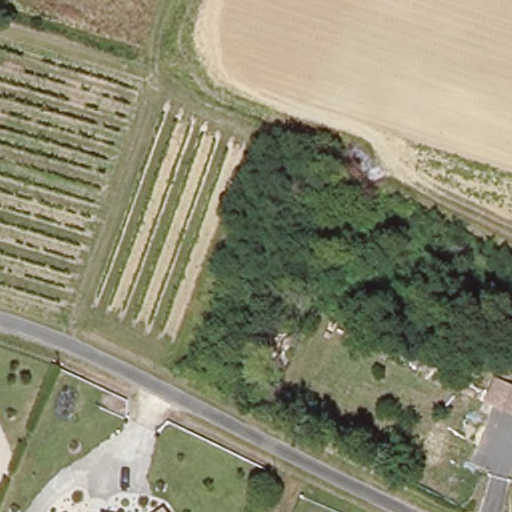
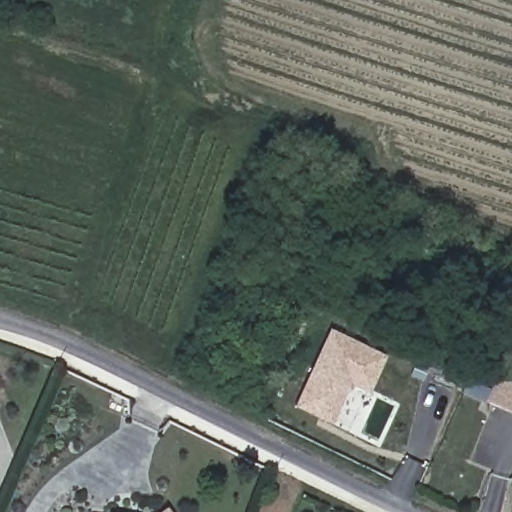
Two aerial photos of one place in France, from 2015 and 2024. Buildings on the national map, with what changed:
new [(368,395),(349,386),(330,425),(292,407),(329,328),(387,356),(368,395)]
unchanged [(495,377),(512,384),(512,415),(485,405),(495,377)]
unchanged [(168,512),(158,512),(165,507),(168,512)]

